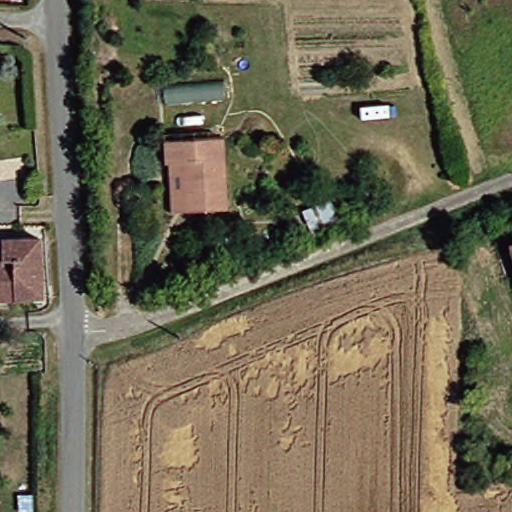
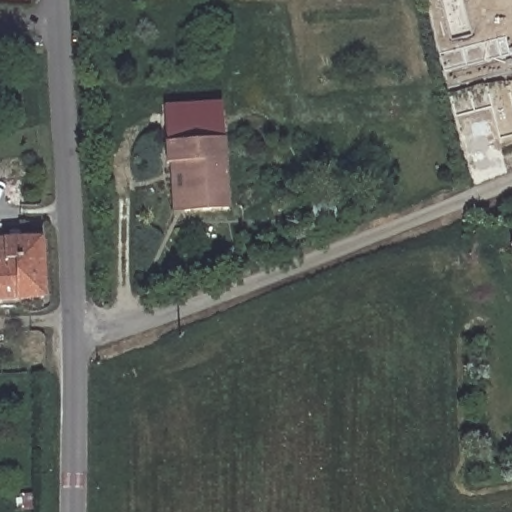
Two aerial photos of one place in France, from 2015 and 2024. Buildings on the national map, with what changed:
new [(223,135),(169,136),(167,105),(222,102),(223,135)]
unchanged [(176,160),(170,160),(169,136),(231,135),(233,207),(188,209),(178,209),(176,160)]
unchanged [(301,225),(296,212),(322,202),(327,214),(301,225)]
unchanged [(512,228),(512,240),(508,230),(512,228)]
unchanged [(48,239),(49,297),(0,299),(0,241),(48,239)]

